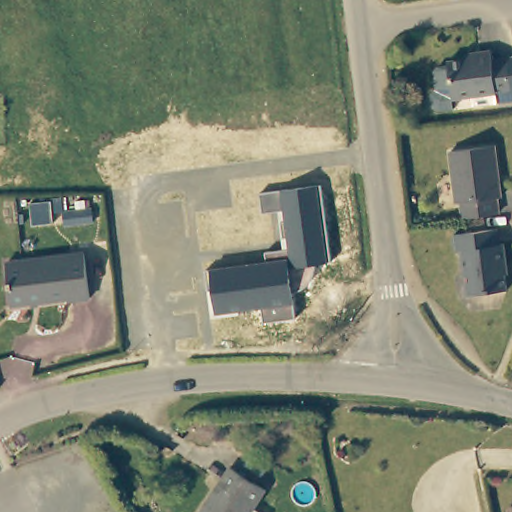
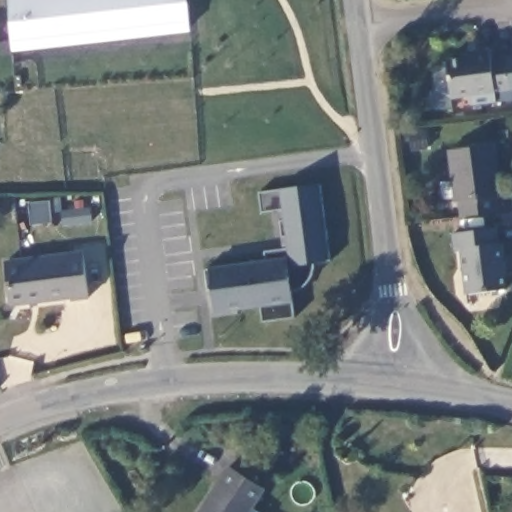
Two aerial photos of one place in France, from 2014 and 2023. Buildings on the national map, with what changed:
new [(12,51),(8,0),(190,0),(193,32),(12,51)]
unchanged [(443,104),(438,104),(434,100),(432,95),(432,90),(435,86),(440,84),(437,61),(441,61),(452,59),(451,55),(477,51),(477,46),(495,44),(496,52),(512,50),(512,84),(456,92),(458,102),(443,104)]
unchanged [(461,202),(457,202),(450,151),(493,146),(500,197),(496,197),(497,212),(463,217),(461,202)]
unchanged [(265,322),(264,308),(215,316),(207,268),(266,260),(265,254),(286,251),(280,211),(263,212),(260,193),(320,185),(330,262),(317,263),(305,291),(291,292),(295,319),(265,322)]
unchanged [(90,207),(91,220),(65,223),(62,210),(90,207)]
unchanged [(461,250),(456,251),(454,234),(497,228),(499,244),(505,244),(508,263),(505,265),(508,290),(468,296),(461,250)]
unchanged [(90,297),(72,300),(71,297),(12,304),(5,263),(84,253),(90,297)]
unchanged [(230,467),(265,488),(252,510),(256,512),(200,512),(230,467)]

